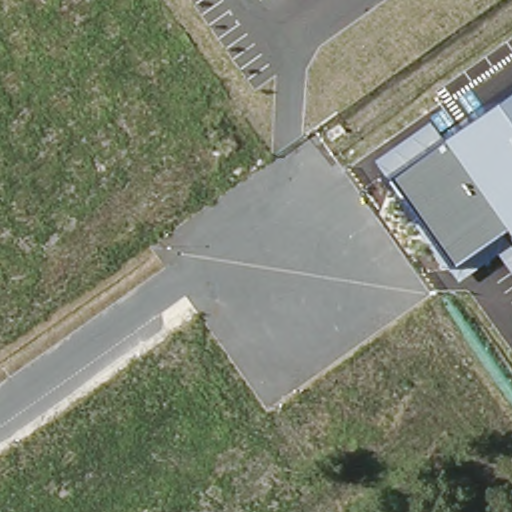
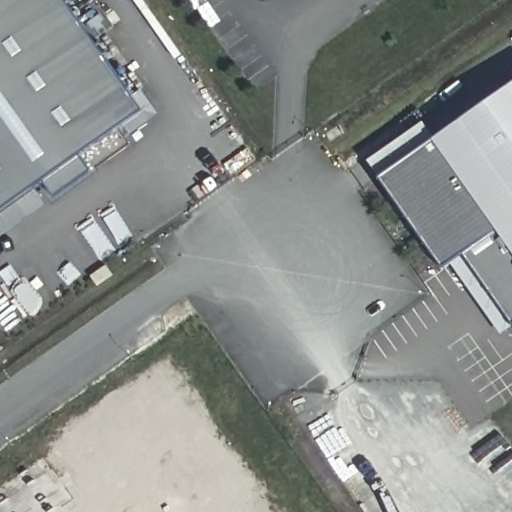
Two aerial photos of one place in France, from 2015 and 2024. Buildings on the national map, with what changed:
new [(76,11),(91,0),(101,0),(117,22),(95,38),(136,96),(109,115),(0,192),(0,0),(68,0),(76,11)]
unchanged [(453,263),(445,265),(382,177),(369,159),(425,122),(434,141),(512,87),(512,327),(500,336),(453,263)]
new [(109,115),(119,128),(0,213),(0,192),(109,115)]

